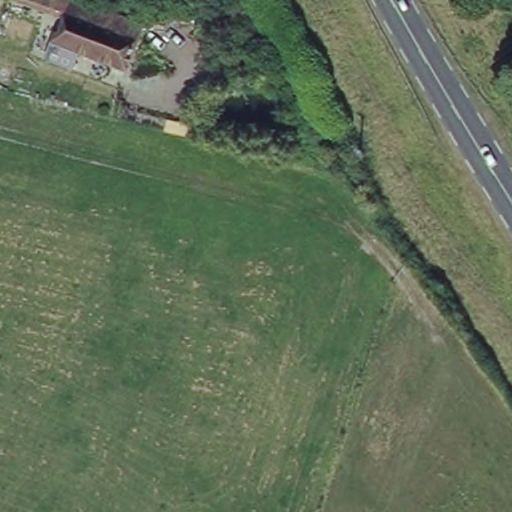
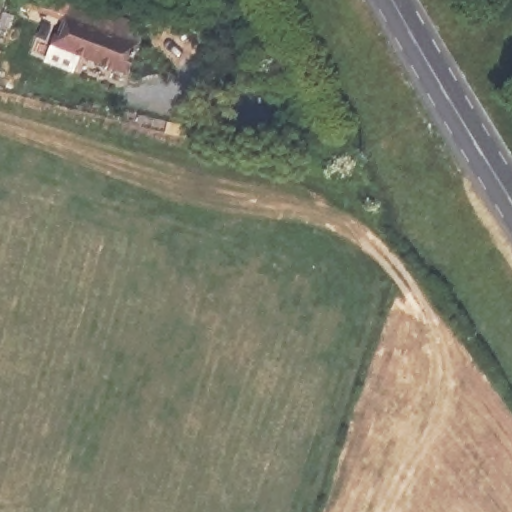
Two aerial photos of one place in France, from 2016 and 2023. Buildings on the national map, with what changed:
unchanged [(65,19),(10,2),(11,0),(62,0),(72,3),(140,27),(135,41),(66,16),(65,19)]
unchanged [(48,64),(54,47),(65,19),(66,16),(135,41),(124,72),(80,56),(74,73),(48,64)]

